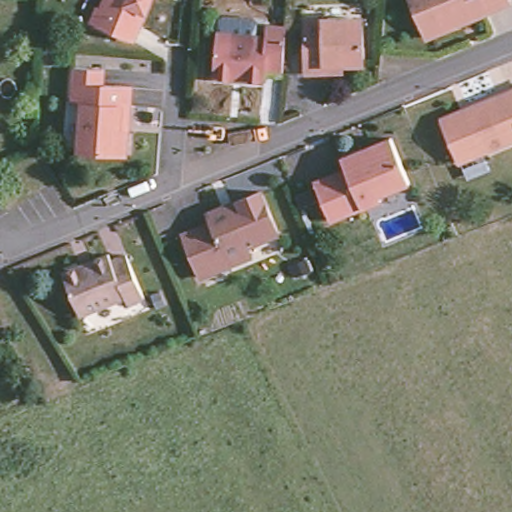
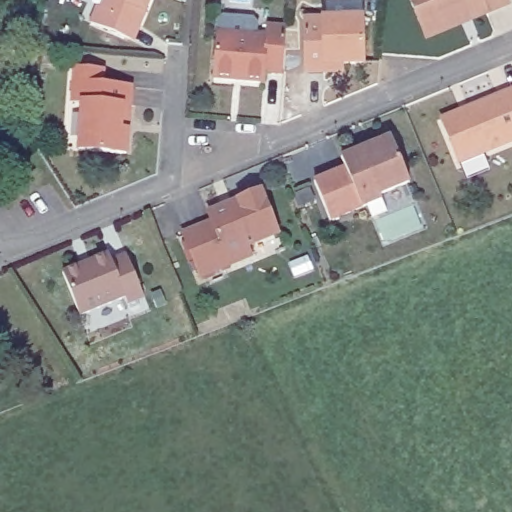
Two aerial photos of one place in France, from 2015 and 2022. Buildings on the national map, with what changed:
unchanged [(130,38),(90,20),(98,3),(105,4),(106,0),(151,0),(141,24),(137,21),(130,38)]
unchanged [(427,35),(412,0),(510,0),(511,1),(427,35)]
unchanged [(211,75),(213,30),(215,17),(219,13),(249,15),(253,19),(252,33),(263,34),(263,23),(282,24),(279,70),(262,69),(262,78),(241,77),(232,76),(211,75)]
unchanged [(328,70),(308,71),(307,18),(364,17),(365,62),(345,62),(345,70),(328,70)]
unchanged [(132,110),(128,109),(127,125),(122,124),(122,130),(130,131),(129,154),(82,150),(85,104),(75,104),(77,85),(77,69),(107,70),(106,86),(133,88),(132,110)]
unchanged [(458,161),(442,120),(440,115),(468,104),(512,86),(512,140),(458,161)]
unchanged [(412,179),(382,192),(385,198),(333,219),(317,181),(345,169),(342,162),(340,158),(368,145),(392,135),(412,179)]
unchanged [(227,257),(197,269),(180,228),(206,218),(203,209),(258,186),(276,228),(246,239),(250,248),(227,257)]
unchanged [(105,250),(108,258),(125,252),(142,296),(125,303),(120,295),(77,313),(60,268),(105,250)]

